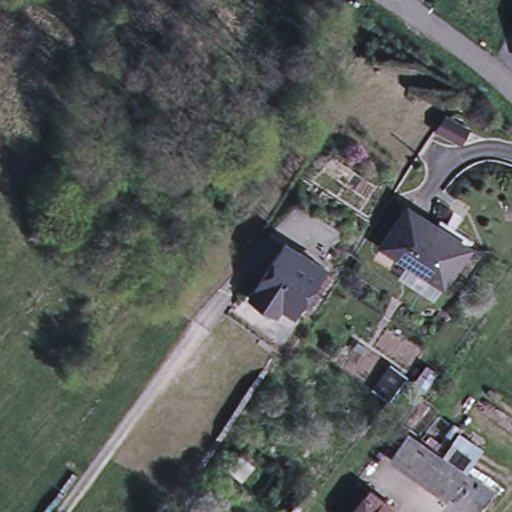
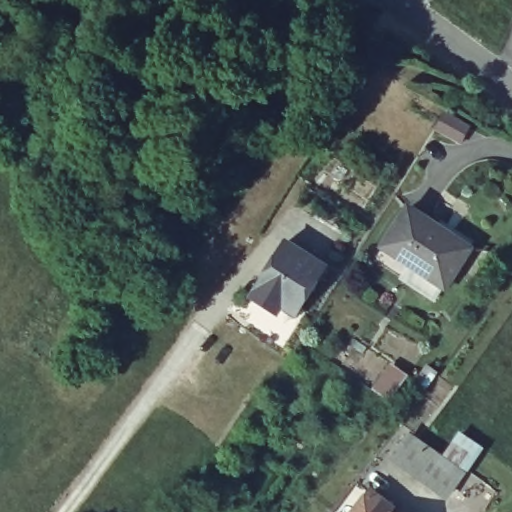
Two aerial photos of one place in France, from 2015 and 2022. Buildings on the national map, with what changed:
unchanged [(446,116),(470,131),(460,146),(437,131),(446,116)]
unchanged [(412,279),(420,265),(387,243),(412,204),(440,222),(444,215),(477,237),(473,244),(448,283),(447,283),(438,296),(412,279)]
unchanged [(285,307),(280,314),(252,295),(257,289),(287,242),(327,268),(302,307),(297,315),(285,307)]
unchanged [(447,498),(401,465),(394,460),(408,439),(417,445),(462,477),(447,498)]
unchanged [(373,493),(380,498),(397,511),(397,512),(358,512),(373,493)]

